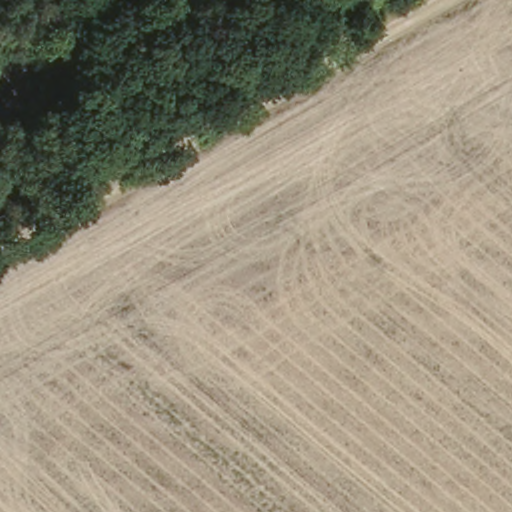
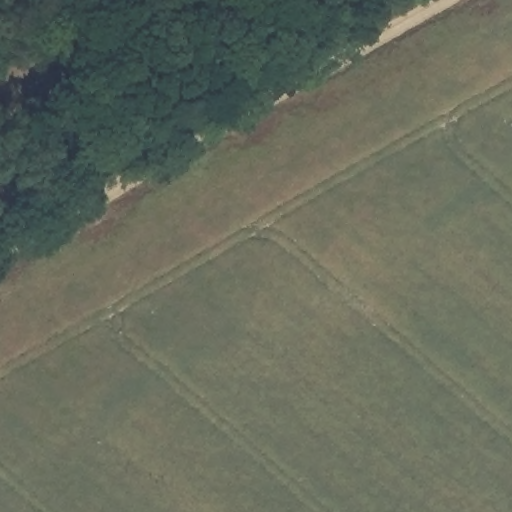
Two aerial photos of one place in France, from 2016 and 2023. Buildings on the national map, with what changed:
unchanged [(0,108),(9,120),(0,129),(0,108)]

